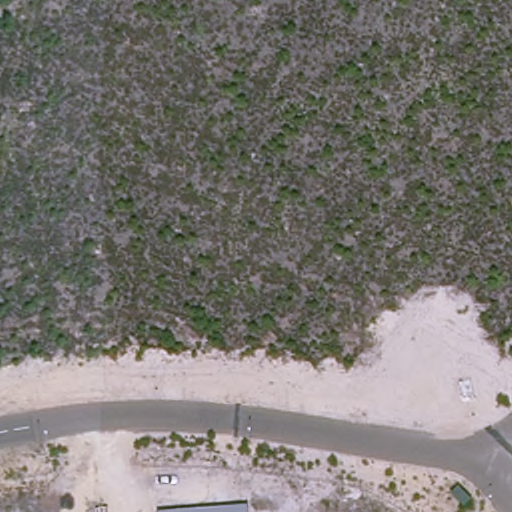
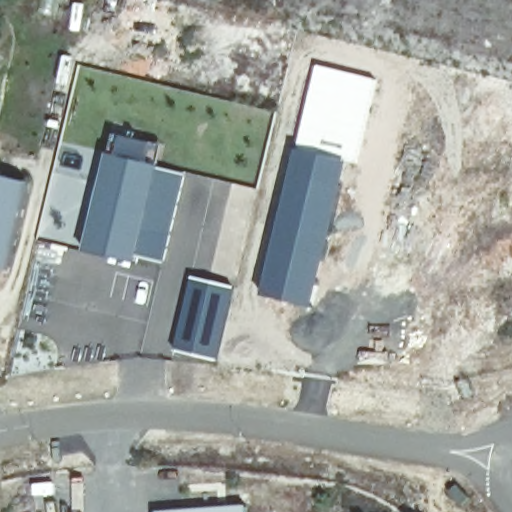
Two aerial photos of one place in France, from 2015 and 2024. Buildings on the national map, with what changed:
new [(318,64),(379,79),(359,164),(346,161),(299,146),(318,64)]
new [(276,208),(286,210),(297,163),(299,146),(346,161),(331,231),(310,308),(256,294),(276,208)]
new [(84,254),(108,154),(159,166),(136,264),(84,254)]
new [(188,174),(167,264),(138,257),(159,166),(188,174)]
new [(29,182),(7,269),(0,267),(0,175),(29,182)]
new [(177,351),(194,279),(233,288),(217,360),(177,351)]
unchanged [(157,512),(248,505),(249,512),(158,512),(157,512)]

